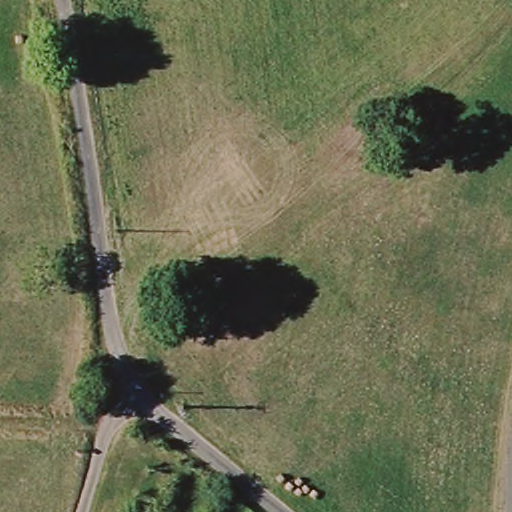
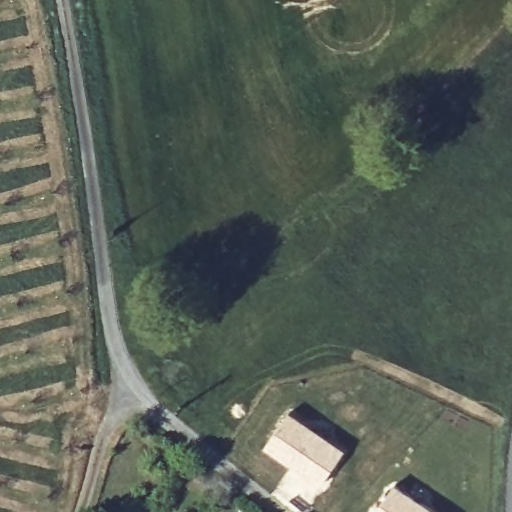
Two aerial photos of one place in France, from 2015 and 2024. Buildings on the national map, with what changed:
new [(290,409),(347,448),(321,485),(263,445),(290,409)]
new [(441,512),(374,512),(396,482),(441,512)]

